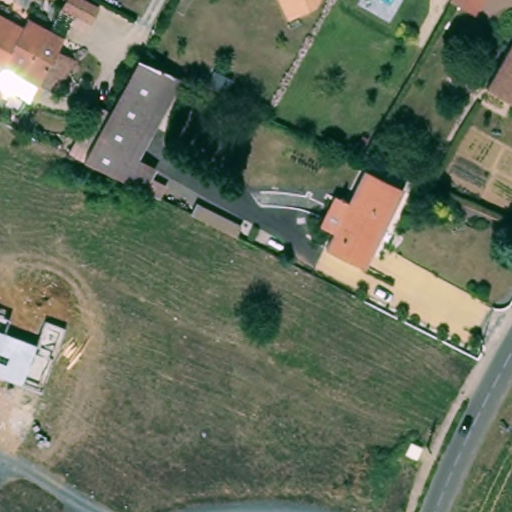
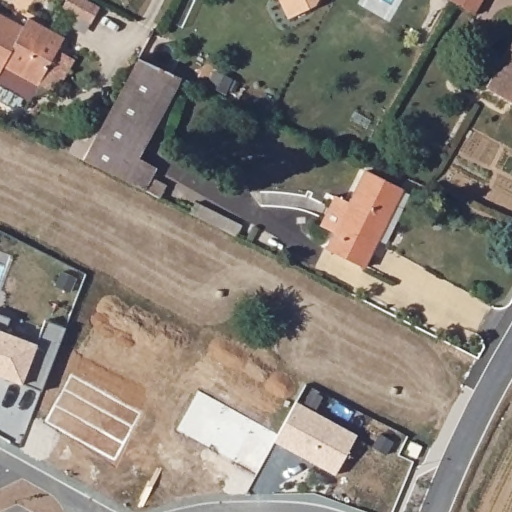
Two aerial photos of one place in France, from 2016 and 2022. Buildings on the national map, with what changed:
unchanged [(84,20),(56,5),(59,0),(86,0),(93,5),(84,20)]
unchanged [(284,17),(277,0),(319,0),(317,3),(284,17)]
unchanged [(450,2),(452,0),(483,0),(475,15),(450,2)]
unchanged [(0,19),(17,27),(21,19),(57,37),(51,48),(65,55),(46,91),(31,83),(24,97),(0,85),(0,19)]
unchanged [(509,109),(511,105),(484,91),(512,44),(512,110),(509,109)]
unchanged [(156,171),(147,192),(84,160),(141,57),(176,73),(135,160),(156,171)]
unchanged [(404,195),(365,268),(327,249),(335,235),(324,229),(339,200),(350,206),(367,176),(404,195)]
unchanged [(6,332),(37,343),(23,385),(0,376),(0,314),(11,318),(6,332)]
unchanged [(46,322),(65,330),(43,392),(23,385),(37,343),(46,322)]
new [(297,403),(358,437),(336,477),(275,443),(297,403)]

